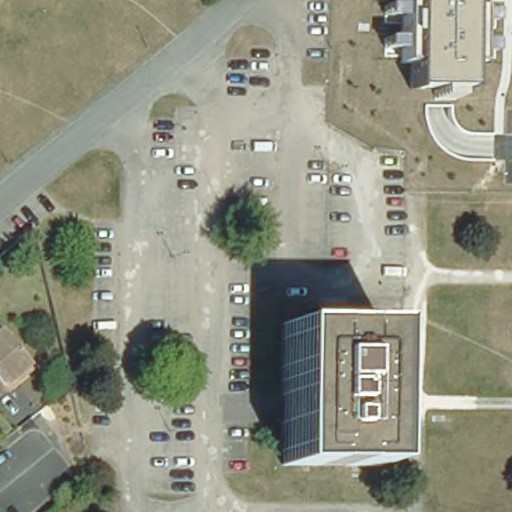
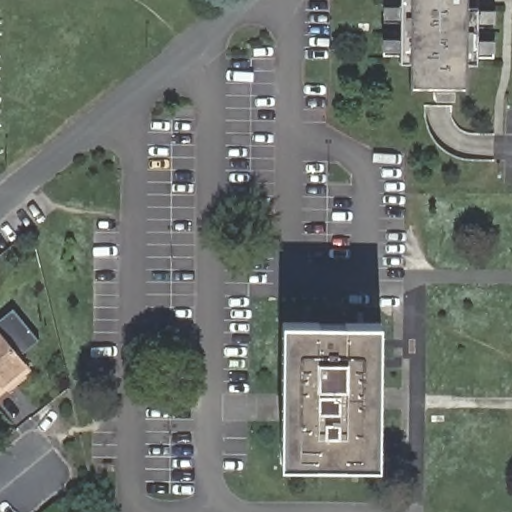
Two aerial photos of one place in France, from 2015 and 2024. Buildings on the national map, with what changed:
unchanged [(466,64),(466,87),(414,87),(415,64),(403,65),(403,0),(477,0),(475,64),(466,64)]
unchanged [(378,323),(375,466),(286,465),(287,323),(378,323)]
unchanged [(0,388),(0,340),(20,364),(24,369),(0,388)]

